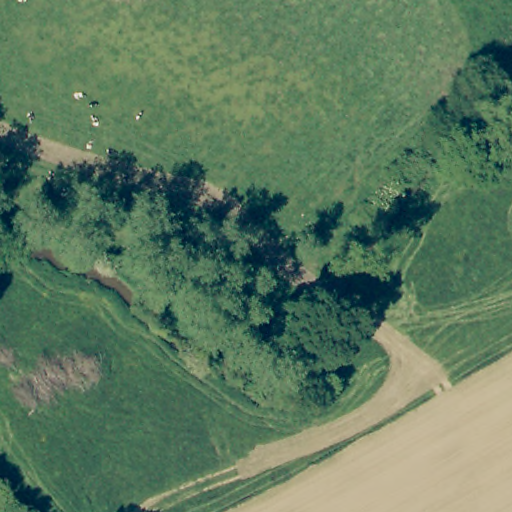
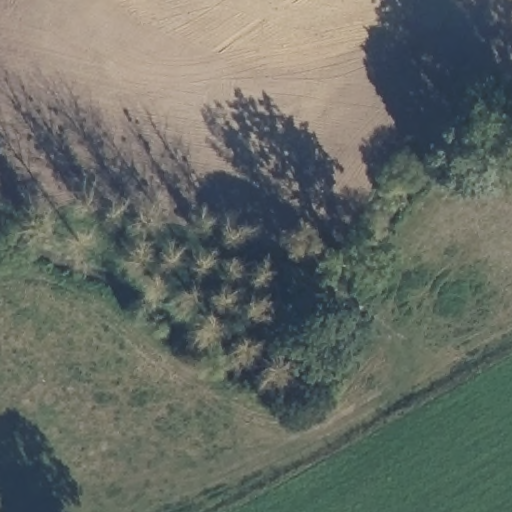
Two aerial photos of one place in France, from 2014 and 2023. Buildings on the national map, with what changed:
[]

